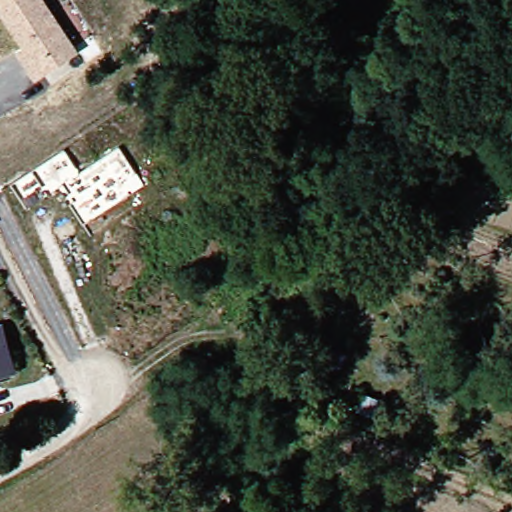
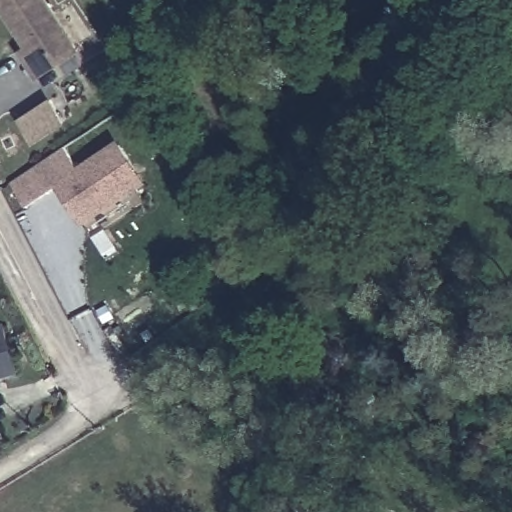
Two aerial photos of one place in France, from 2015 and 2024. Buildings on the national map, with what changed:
unchanged [(0,2),(0,1),(2,0),(47,0),(82,54),(59,68),(40,80),(24,55),(31,50),(0,2)]
new [(78,169),(119,142),(148,186),(84,228),(56,189),(26,206),(11,183),(65,148),(78,169)]
unchanged [(24,378),(0,387),(0,322),(8,320),(24,378)]

